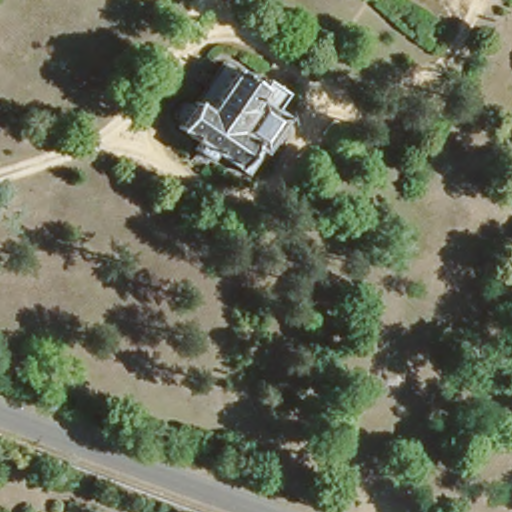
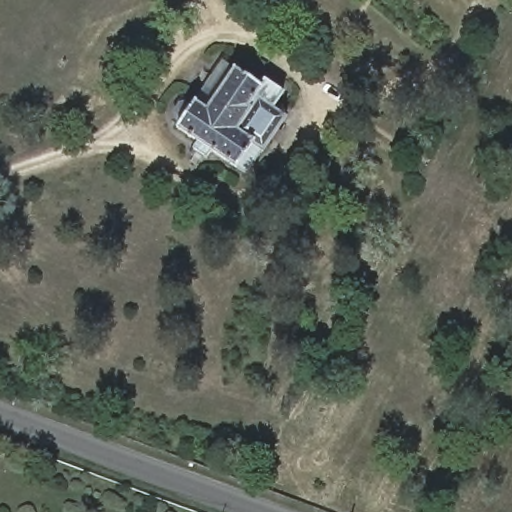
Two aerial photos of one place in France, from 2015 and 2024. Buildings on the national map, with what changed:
unchanged [(265,79),(284,91),(273,108),(287,118),(265,151),(257,146),(242,168),(215,151),(209,159),(195,151),(201,141),(179,127),(181,124),(174,120),(173,112),(179,104),(187,102),(191,106),(195,101),(221,61),(234,69),(260,85),(265,79)]

